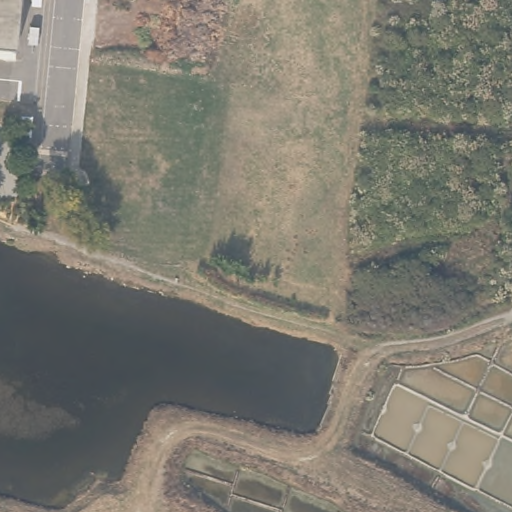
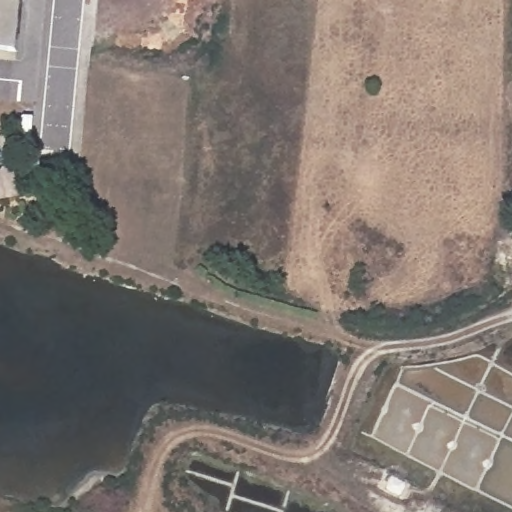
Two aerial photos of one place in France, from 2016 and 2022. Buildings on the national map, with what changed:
unchanged [(0,51),(0,0),(12,0),(5,52),(0,51)]

